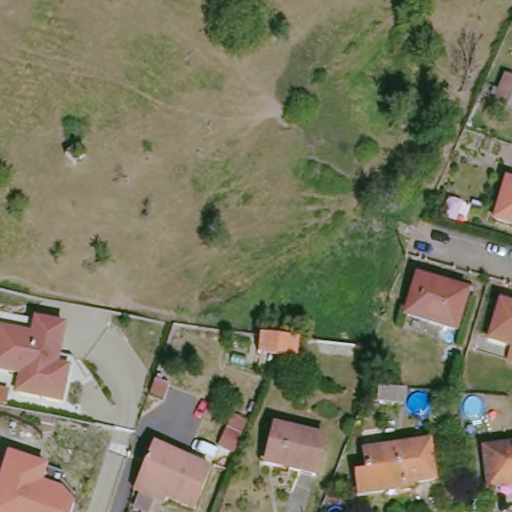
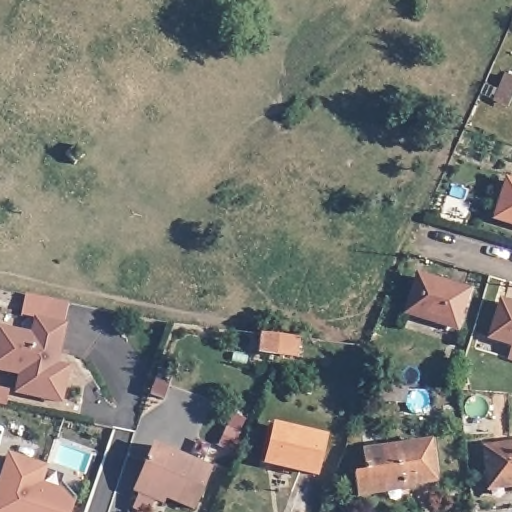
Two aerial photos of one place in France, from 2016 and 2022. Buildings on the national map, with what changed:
unchanged [(491,98),(504,71),(512,75),(512,85),(503,104),(491,98)]
unchanged [(503,175),(512,178),(512,219),(491,213),(503,175)]
unchanged [(455,325),(402,310),(413,272),(466,287),(455,325)]
unchanged [(498,296),(512,301),(512,342),(487,334),(498,296)]
unchanged [(67,322),(59,360),(71,363),(63,400),(16,390),(19,371),(0,368),(0,324),(31,330),(33,316),(67,322)]
unchanged [(300,341),(298,358),(280,355),(261,352),(261,335),(261,334),(275,336),(283,337),(287,338),(292,338),(292,339),(300,340),(300,341)]
unchanged [(313,475),(267,460),(279,425),(325,441),(313,475)]
unchanged [(432,479),(389,486),(388,481),(382,482),(383,490),(356,494),(353,472),(363,471),(360,449),(425,438),(432,479)]
unchanged [(196,505),(138,482),(154,447),(211,470),(196,505)]
unchanged [(486,453),(512,450),(512,490),(491,492),(486,453)]
unchanged [(43,480),(62,486),(75,502),(71,512),(0,512),(0,473),(7,452),(48,465),(43,480)]

